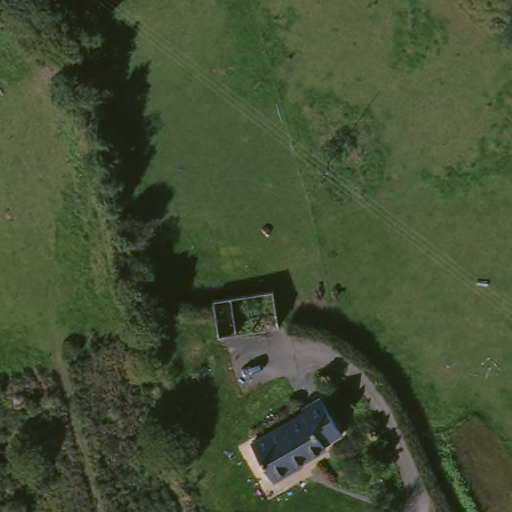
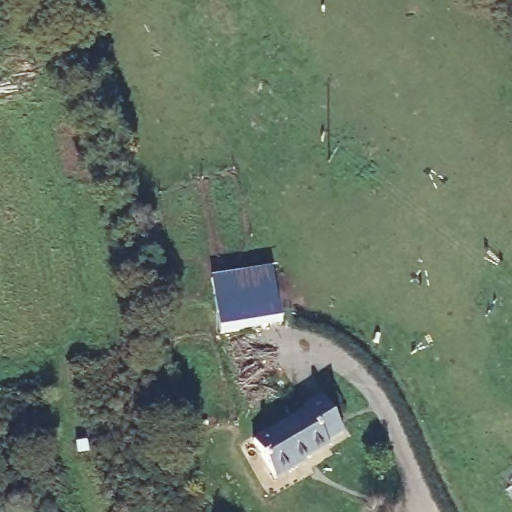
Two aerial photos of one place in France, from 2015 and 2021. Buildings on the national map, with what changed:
new [(209,278),(271,269),(279,328),(219,336),(209,278)]
unchanged [(307,405),(302,400),(317,389),(343,423),(294,458),(299,464),(279,479),(253,443),(307,405)]

